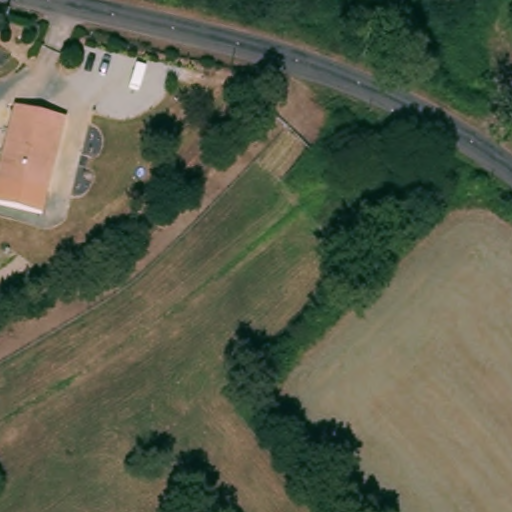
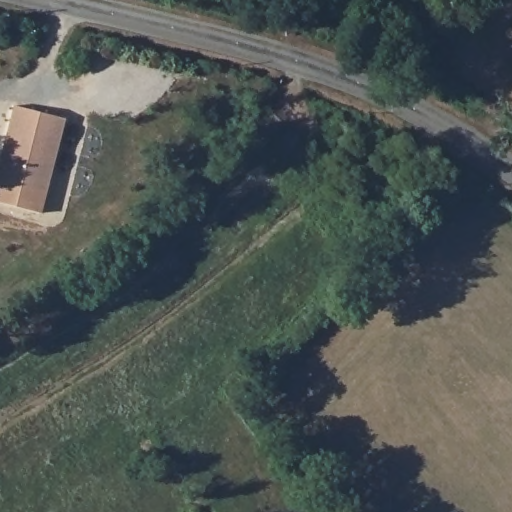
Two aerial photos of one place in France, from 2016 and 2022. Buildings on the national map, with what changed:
unchanged [(0,182),(0,162),(15,104),(69,116),(64,135),(54,171),(48,192),(0,182)]

